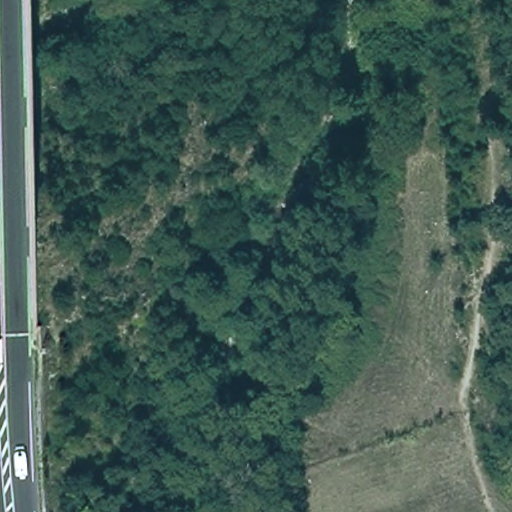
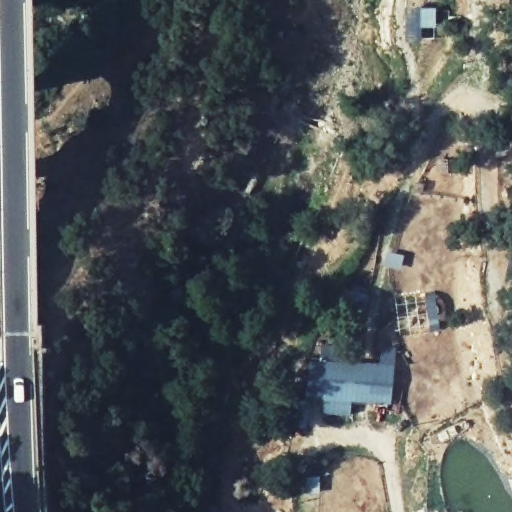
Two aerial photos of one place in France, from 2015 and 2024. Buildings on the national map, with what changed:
new [(449,22),(436,20),(436,26),(424,26),(423,38),(406,37),(406,10),(419,8),(419,7),(436,7),(436,9),(449,10),(449,22)]
new [(308,357),(394,362),(391,404),(351,401),(349,416),(301,408),(308,357)]

